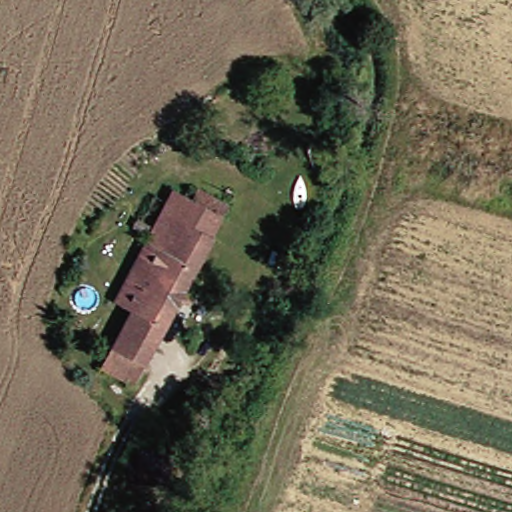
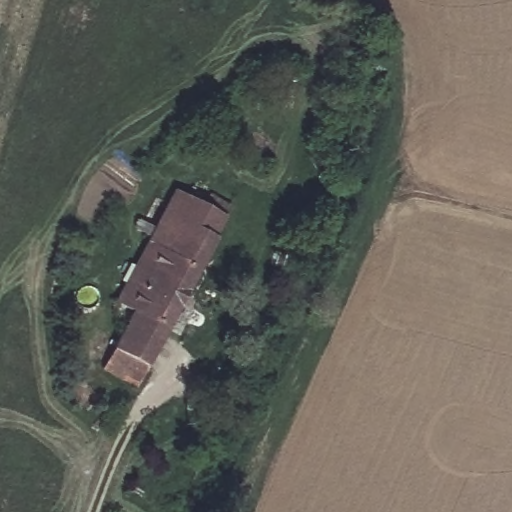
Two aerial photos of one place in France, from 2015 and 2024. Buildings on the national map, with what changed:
unchanged [(180,191),(229,217),(218,239),(168,212),(180,191)]
unchanged [(166,216),(168,212),(218,239),(170,329),(136,311),(120,302),(166,216)]
unchanged [(106,369),(117,348),(136,311),(170,329),(150,366),(139,387),(106,369)]

